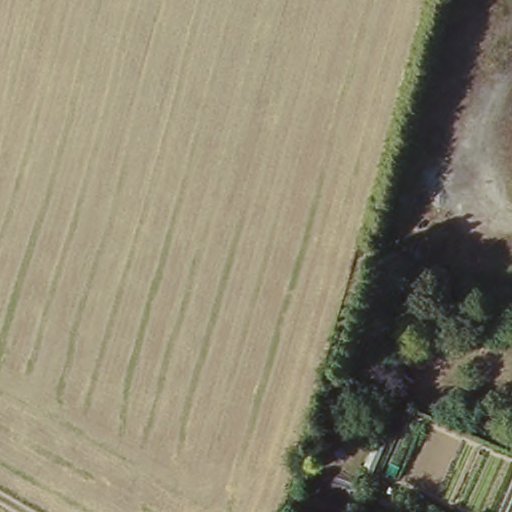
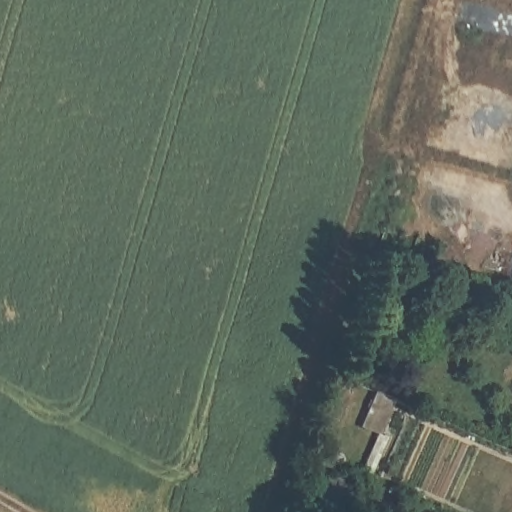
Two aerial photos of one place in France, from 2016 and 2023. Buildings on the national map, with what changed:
unchanged [(390,406),(414,417),(396,456),(373,446),(390,406)]

